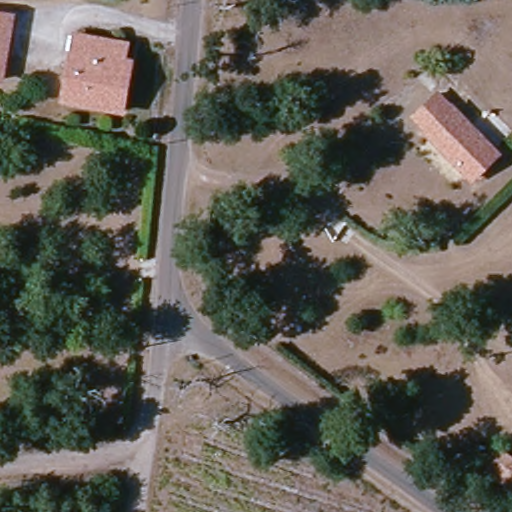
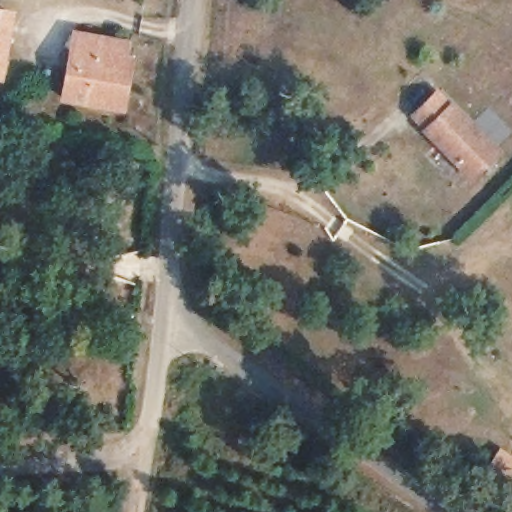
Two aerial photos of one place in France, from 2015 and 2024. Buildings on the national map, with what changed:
unchanged [(0,51),(0,11),(9,13),(0,51)]
unchanged [(121,48),(119,61),(129,62),(118,115),(63,103),(77,38),(121,48)]
unchanged [(433,95),(444,108),(450,103),(484,138),(494,124),(506,131),(493,143),(499,153),(469,185),(408,118),(433,95)]

